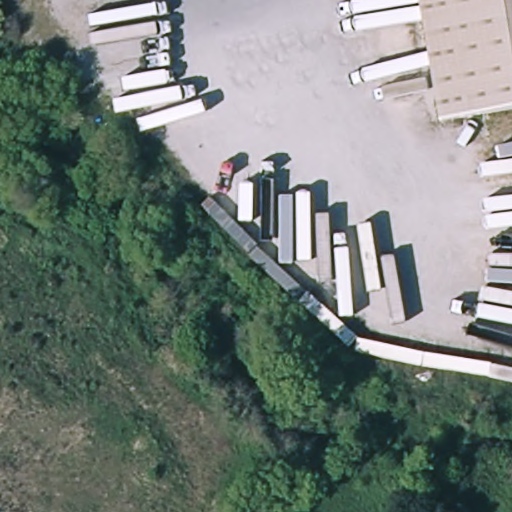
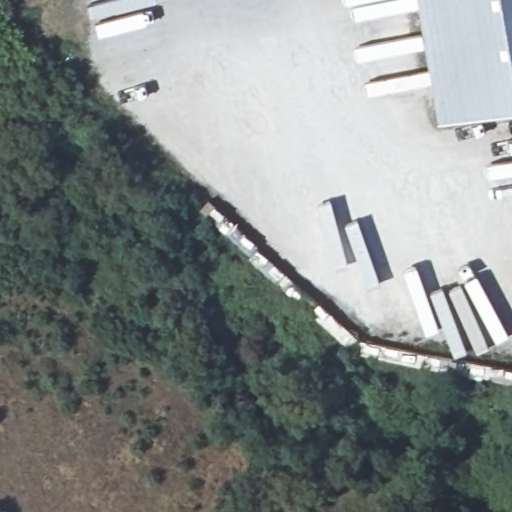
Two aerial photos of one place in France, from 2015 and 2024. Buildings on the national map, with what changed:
unchanged [(416,0),(512,0),(512,113),(437,126),(416,0)]

